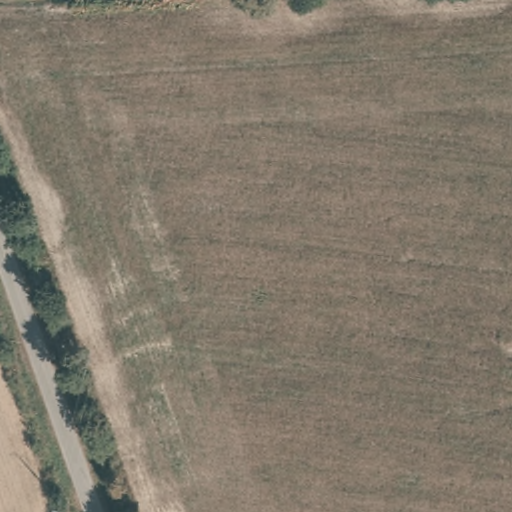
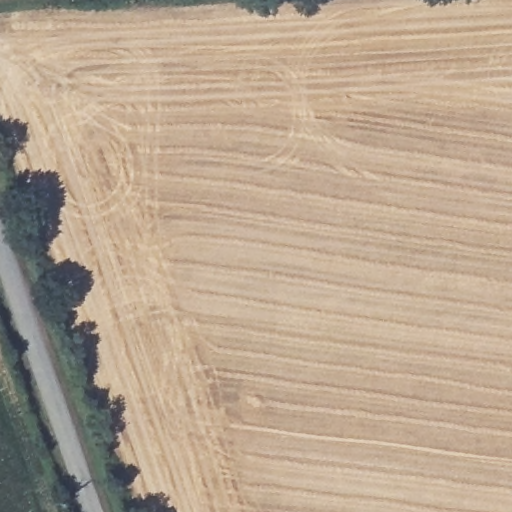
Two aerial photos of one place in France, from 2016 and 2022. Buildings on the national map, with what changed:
[]

